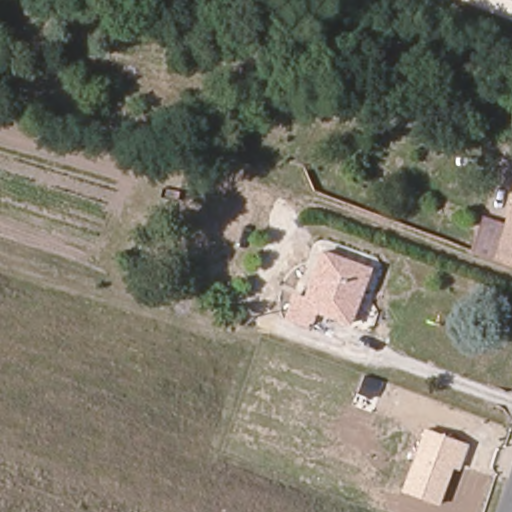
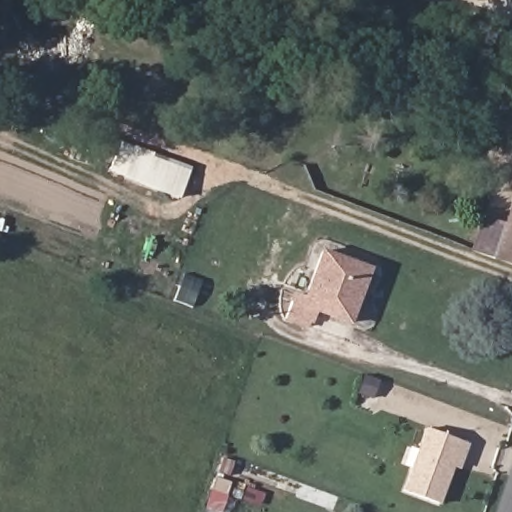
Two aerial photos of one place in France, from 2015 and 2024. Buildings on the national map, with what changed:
new [(191,166),(180,198),(107,172),(119,140),(191,166)]
unchanged [(474,253),(488,217),(508,224),(512,213),(512,267),(474,253)]
unchanged [(370,272),(351,324),(319,313),(315,325),(288,316),(294,301),(305,305),(328,254),(370,272)]
unchanged [(439,504),(401,490),(424,429),(468,444),(459,471),(453,468),(439,504)]

